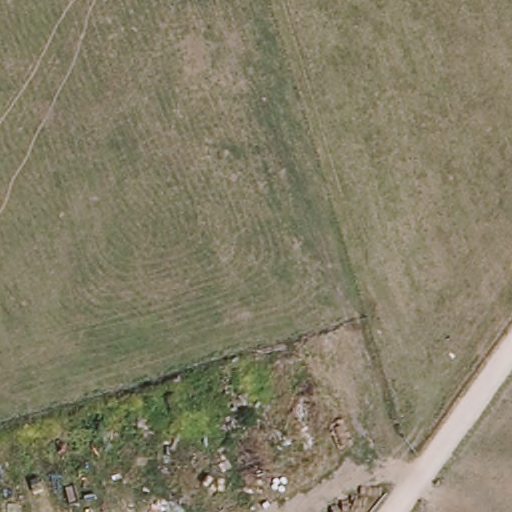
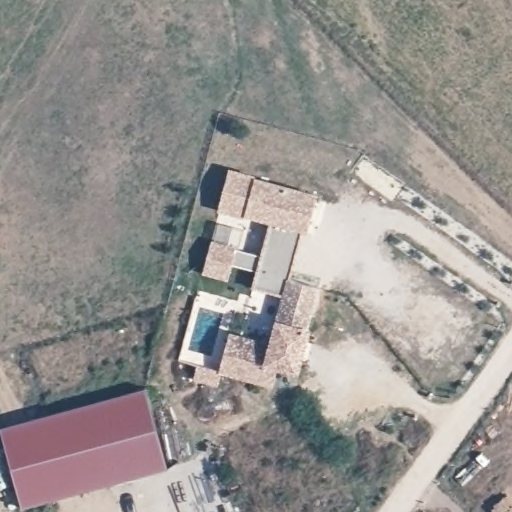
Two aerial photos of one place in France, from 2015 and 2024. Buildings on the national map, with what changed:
new [(197,364),(219,371),(230,332),(269,342),(276,318),(283,294),(252,287),(257,271),(232,265),(228,280),(202,273),(211,241),(261,254),(269,224),(217,211),(229,167),(256,175),(255,177),(317,195),(292,281),(321,288),(310,327),(298,373),(277,368),(272,386),(223,373),(219,385),(193,377),(197,364)]
new [(167,469),(22,507),(0,427),(147,388),(167,469)]

